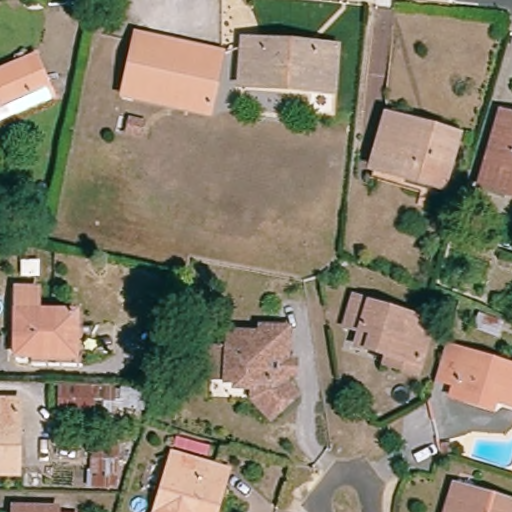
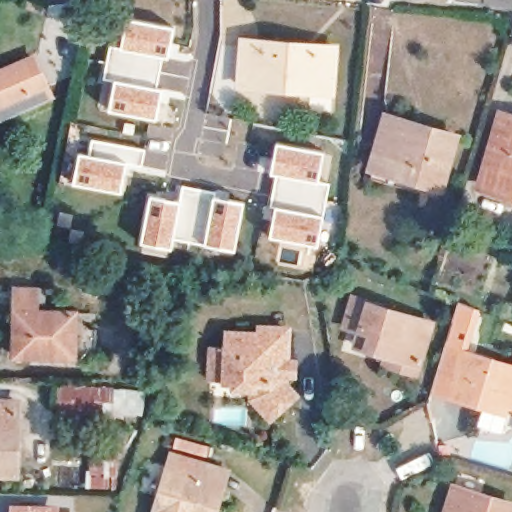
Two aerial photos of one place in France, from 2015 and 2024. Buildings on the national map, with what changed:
new [(122,46),(129,19),(176,28),(170,58),(163,57),(157,89),(163,91),(156,121),(110,111),(116,81),(106,79),(111,47),(122,46)]
demolished [(156,104),(124,96),(136,38),(165,45),(156,104)]
unchanged [(311,94),(241,88),(244,42),(308,47),(336,50),(336,54),(333,89),(333,96),(311,94)]
demolished [(221,57),(207,115),(156,104),(165,45),(221,57)]
unchanged [(51,104),(11,122),(0,99),(0,82),(35,66),(51,104)]
unchanged [(0,127),(0,99),(11,122),(0,127)]
unchanged [(373,170),(380,145),(389,117),(455,137),(453,144),(439,190),(373,170)]
unchanged [(478,190),(500,117),(512,120),(512,199),(478,190)]
new [(145,152),(141,167),(126,164),(121,193),(75,185),(80,154),(91,156),(95,141),(145,152)]
new [(321,152),(316,181),(328,184),(321,216),(315,247),(272,237),(277,208),(271,207),(277,176),(270,174),(276,144),(321,152)]
new [(182,202),(184,186),(217,192),(216,197),(245,203),(236,251),(174,237),(172,249),(143,244),(151,197),(182,202)]
unchanged [(68,358),(15,358),(16,312),(16,292),(39,292),(38,313),(76,315),(76,332),(75,359),(68,358)]
unchanged [(385,358),(366,352),(355,348),(360,333),(343,329),(352,302),(429,326),(414,376),(396,370),(382,366),(385,358)]
unchanged [(257,338),(257,331),(285,332),(283,365),(291,365),(291,380),(282,379),(282,386),(294,398),(268,422),(249,401),(250,387),(223,385),(223,381),(208,381),(211,347),(225,348),(226,337),(257,338)]
unchanged [(511,411),(458,395),(458,392),(440,387),(449,355),(468,361),(512,372),(512,411),(511,411)]
new [(114,386),(113,391),(145,390),(144,414),(61,414),(61,385),(114,386)]
unchanged [(19,473),(0,473),(0,404),(18,405),(19,473)]
unchanged [(209,512),(149,512),(166,453),(213,467),(222,470),(209,512)]
unchanged [(445,491),(504,506),(502,512),(439,512),(445,491)]
unchanged [(9,506),(52,507),(52,512),(8,512),(9,506)]
unchanged [(81,507),(81,512),(52,512),(52,507),(81,507)]

